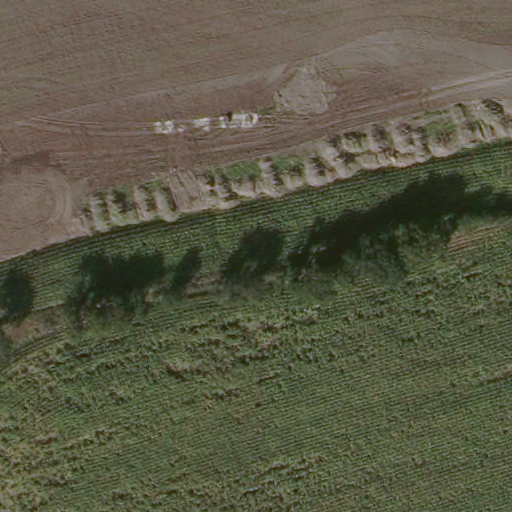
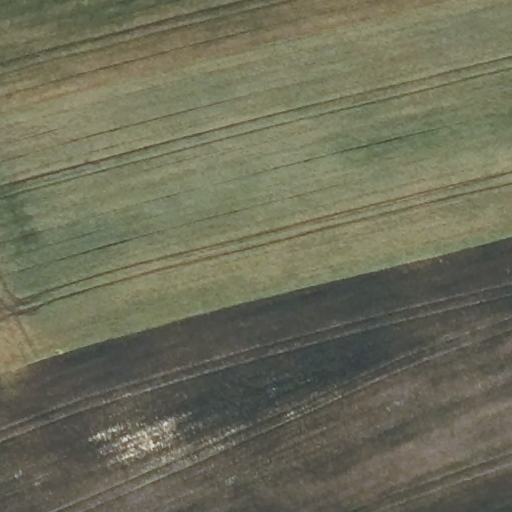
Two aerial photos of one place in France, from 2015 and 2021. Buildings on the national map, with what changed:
[]

